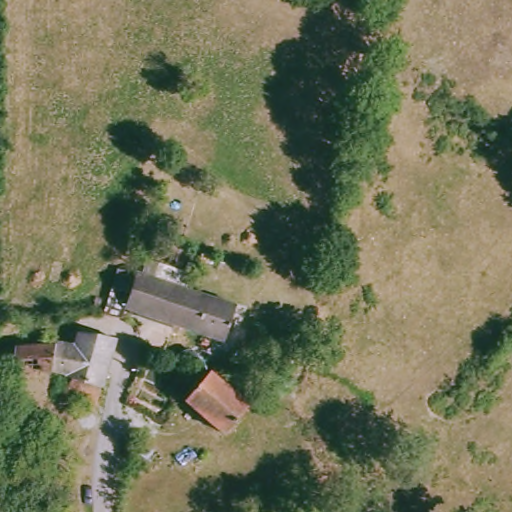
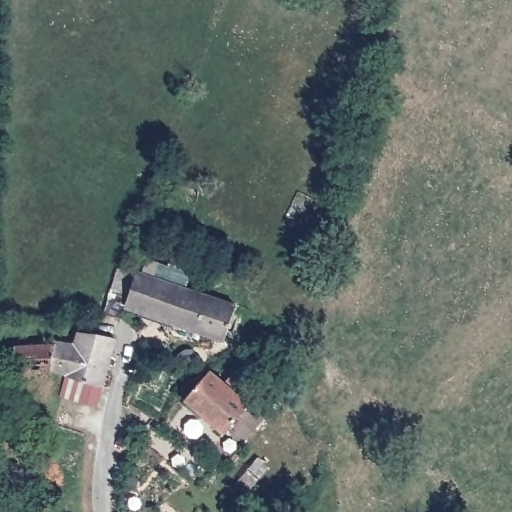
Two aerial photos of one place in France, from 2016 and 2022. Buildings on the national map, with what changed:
unchanged [(230,337),(132,309),(145,273),(242,302),(230,337)]
unchanged [(72,406),(80,382),(64,378),(31,370),(40,342),(69,343),(90,334),(128,330),(112,390),(105,415),(72,406)]
unchanged [(0,378),(0,360),(5,361),(0,378)]
unchanged [(215,371),(253,396),(233,428),(195,405),(215,371)]

